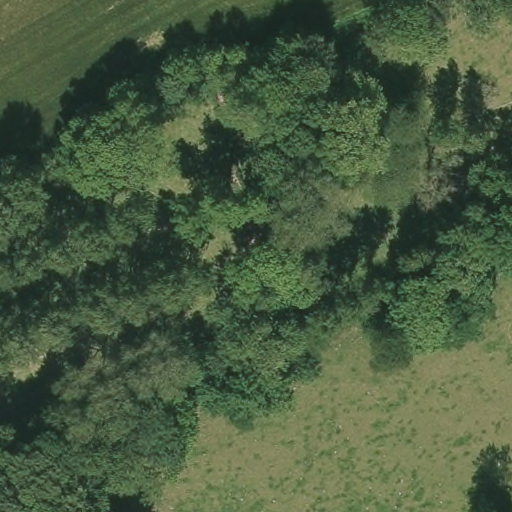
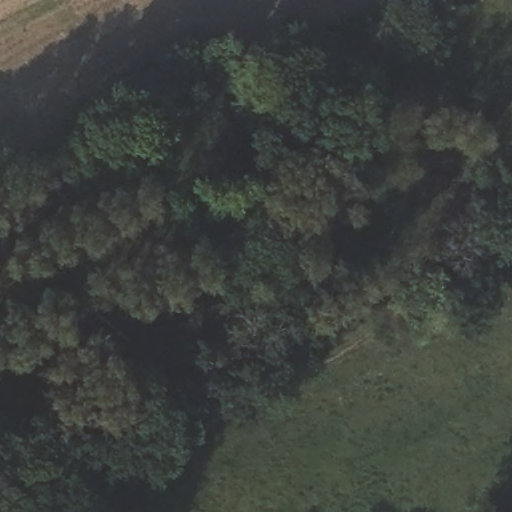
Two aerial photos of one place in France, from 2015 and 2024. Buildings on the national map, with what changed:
unchanged [(507,226),(484,229),(483,203),(506,202),(507,226)]

